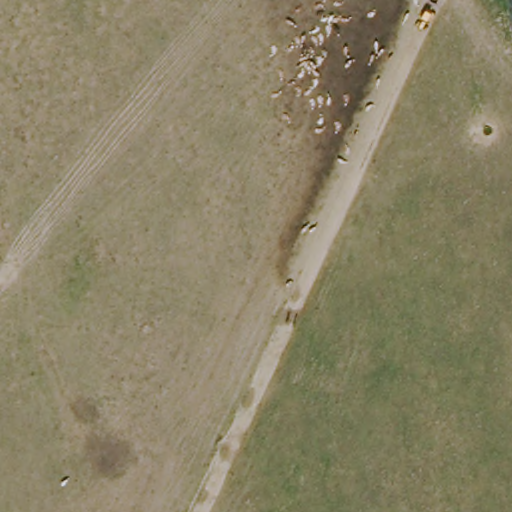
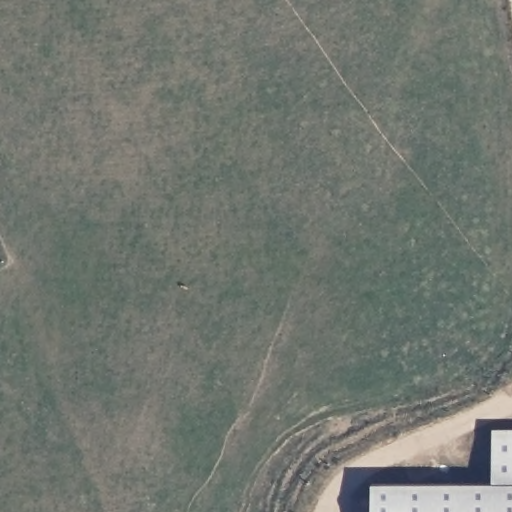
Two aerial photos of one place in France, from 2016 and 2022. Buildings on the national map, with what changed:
new [(493,480),(493,426),(512,426),(512,512),(373,512),(373,478),(493,480)]

